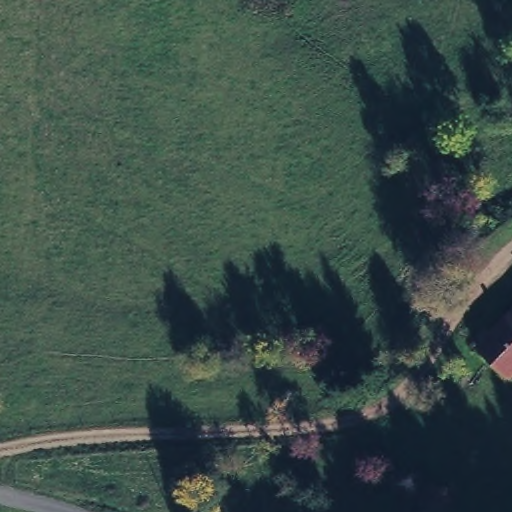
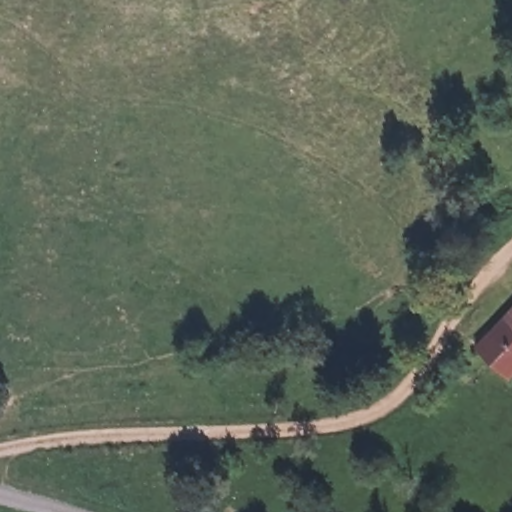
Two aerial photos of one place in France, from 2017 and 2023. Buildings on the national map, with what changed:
unchanged [(494,377),(464,348),(512,304),(512,362),(494,377)]

